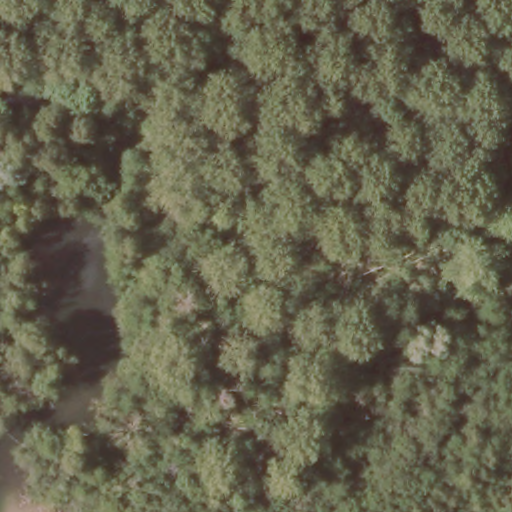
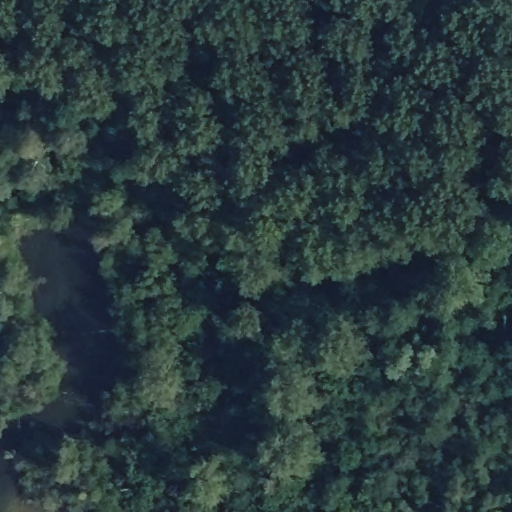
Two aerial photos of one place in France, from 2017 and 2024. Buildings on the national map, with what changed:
[]

